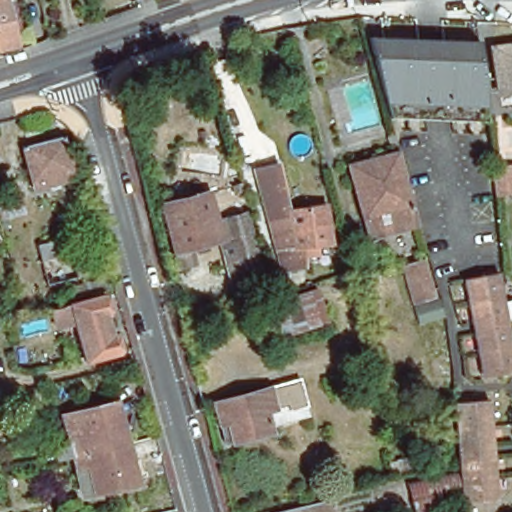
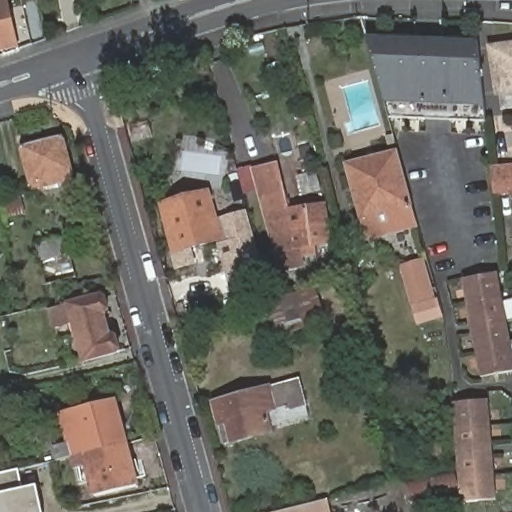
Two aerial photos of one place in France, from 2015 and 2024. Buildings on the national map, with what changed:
unchanged [(20,42),(1,47),(0,47),(0,0),(11,0),(20,42)]
unchanged [(478,31),(484,87),(486,113),(390,110),(366,28),(478,31)]
unchanged [(512,48),(512,92),(498,95),(491,51),(512,48)]
unchanged [(19,148),(61,139),(71,179),(60,182),(40,187),(29,189),(19,148)]
unchanged [(364,230),(348,168),(396,154),(415,227),(377,238),(367,241),(364,230)]
unchanged [(287,212),(324,205),(330,242),(295,248),(298,266),(278,271),(253,172),(275,166),(287,212)]
unchanged [(493,170),(512,168),(512,194),(494,196),(493,170)]
unchanged [(161,206),(206,194),(214,222),(246,214),(248,225),(245,226),(253,256),(257,255),(265,285),(268,299),(237,307),(219,241),(190,250),(192,257),(186,258),(188,266),(178,269),(161,206)]
unchanged [(43,282),(34,246),(64,239),(72,274),(43,282)]
unchanged [(505,320),(509,341),(512,355),(512,366),(480,372),(461,274),(495,268),(505,320)]
unchanged [(404,277),(422,272),(432,310),(414,314),(404,277)]
unchanged [(315,289),(324,325),(274,337),(266,301),(315,289)]
unchanged [(65,313),(52,316),(50,309),(100,296),(104,313),(99,314),(104,334),(109,333),(114,352),(78,360),(65,313)]
unchanged [(271,414),(275,432),(236,442),(231,423),(224,425),(219,403),(289,383),(295,407),(271,414)]
unchanged [(489,400),(496,500),(462,502),(460,480),(457,443),(455,409),(454,402),(489,400)]
unchanged [(51,455),(66,452),(59,424),(114,409),(125,450),(72,462),(61,465),(54,467),(51,455)]
unchanged [(125,450),(136,491),(95,501),(90,479),(87,471),(75,473),(72,462),(125,450)]
new [(19,471),(25,489),(37,487),(43,512),(0,512),(0,475),(19,471)]
unchanged [(449,477),(454,500),(417,509),(411,486),(449,477)]
unchanged [(328,512),(282,512),(325,502),(328,512)]

